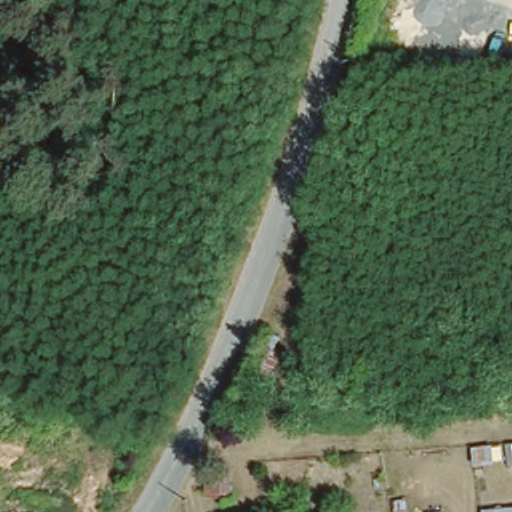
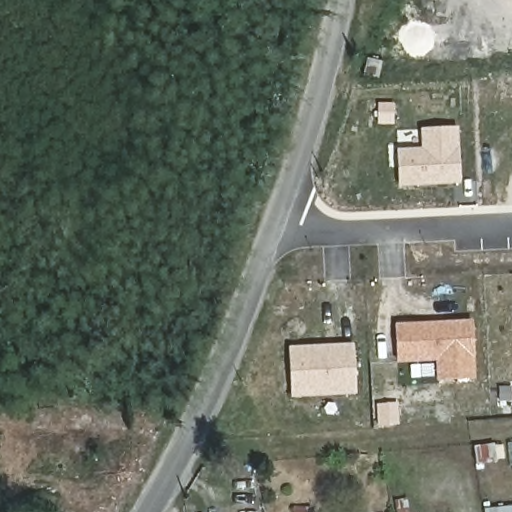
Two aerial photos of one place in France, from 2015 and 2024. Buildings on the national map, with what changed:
unchanged [(375,77),(378,59),(393,62),(388,80),(375,77)]
new [(422,148),(422,130),(458,128),(461,185),(399,188),(397,149),(422,148)]
new [(437,361),(397,362),(395,324),(473,320),(476,378),(439,380),(437,361)]
new [(355,343),(357,394),(292,398),(290,347),(355,343)]
demolished [(207,465),(231,465),(230,496),(207,494),(207,465)]
new [(484,509),(512,506),(512,512),(484,512),(484,509)]
unchanged [(295,511),(322,507),(322,509),(350,507),(350,512),(295,512),(295,511)]

